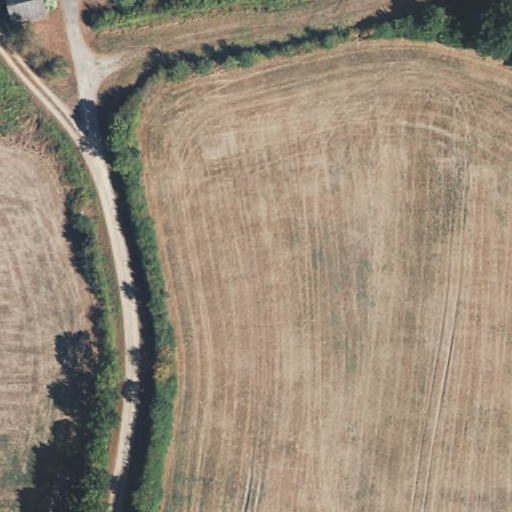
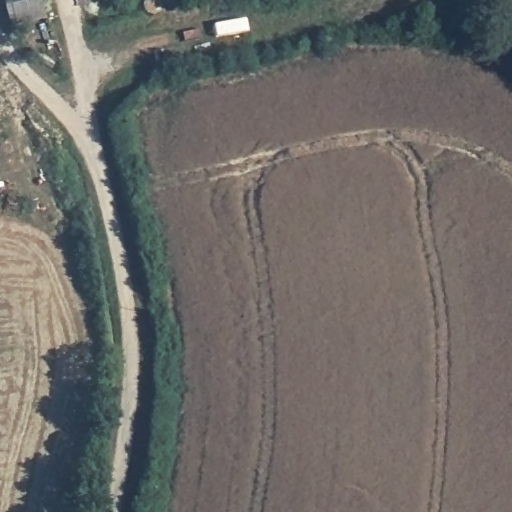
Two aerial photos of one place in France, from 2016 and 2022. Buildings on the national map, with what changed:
unchanged [(15,25),(9,0),(45,0),(49,18),(15,25)]

